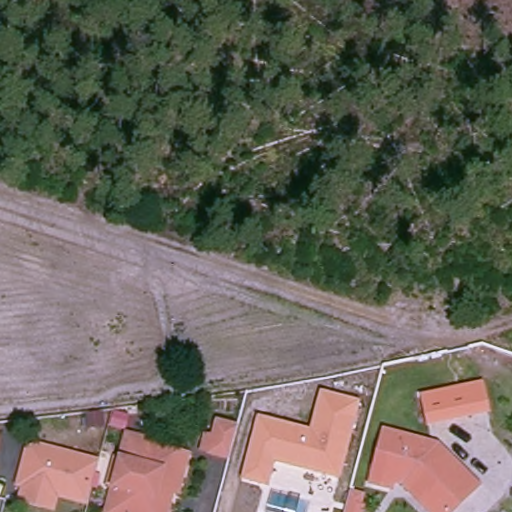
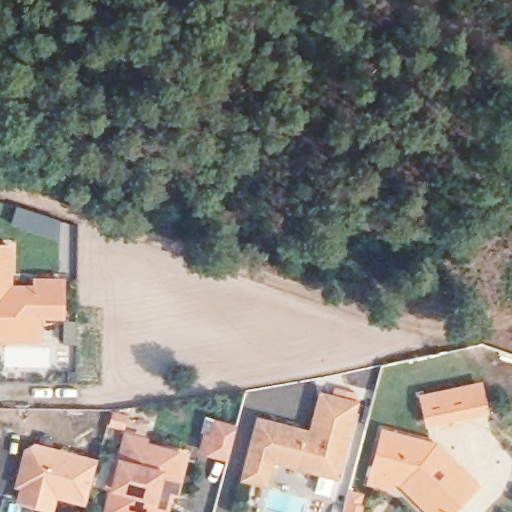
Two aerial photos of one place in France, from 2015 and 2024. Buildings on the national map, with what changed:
new [(12,243),(13,284),(32,283),(32,276),(65,277),(66,319),(42,318),(41,342),(0,342),(0,243),(12,243)]
unchanged [(485,381),(491,407),(433,421),(427,395),(485,381)]
unchanged [(358,401),(338,478),(274,464),(267,487),(241,480),(257,416),(309,428),(321,390),(358,401)]
unchanged [(236,426),(227,463),(198,455),(202,433),(210,435),(214,420),(236,426)]
unchanged [(477,487),(451,512),(430,512),(404,480),(396,477),(394,486),(374,481),(387,430),(435,442),(477,487)]
unchanged [(155,440),(156,449),(191,457),(174,512),(112,512),(105,510),(123,432),(155,440)]
unchanged [(20,501),(23,486),(18,485),(25,450),(32,445),(96,456),(88,498),(56,492),(53,507),(20,501)]
unchanged [(366,491),(364,501),(366,501),(363,512),(347,512),(352,492),(354,488),(366,491)]

